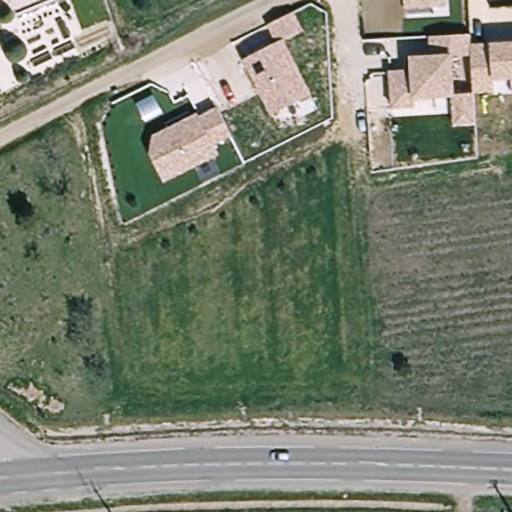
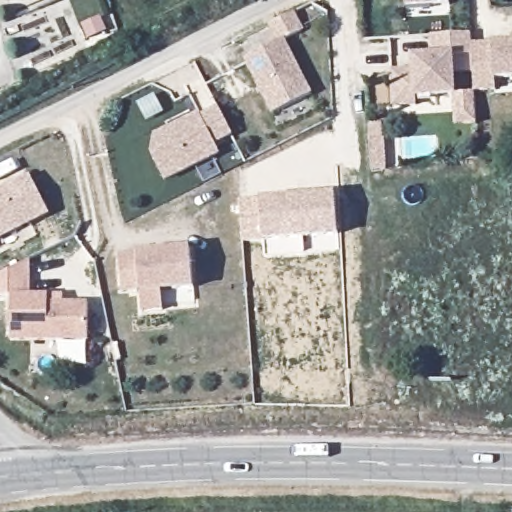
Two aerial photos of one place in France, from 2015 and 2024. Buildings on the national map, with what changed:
unchanged [(24,0),(20,1),(19,0),(24,0)]
unchanged [(406,0),(447,0),(447,5),(407,7),(406,0)]
unchanged [(310,93),(274,116),(245,61),(274,43),(266,27),(291,12),(303,29),(284,41),(310,93)]
unchanged [(411,69),(411,55),(429,55),(428,35),(471,35),(472,44),(491,43),(512,41),(512,79),(494,80),(494,95),(475,94),(476,125),(454,125),(452,96),(417,97),(417,105),(393,105),(391,72),(411,69)]
unchanged [(201,117),(217,110),(231,135),(213,145),(218,156),(165,182),(150,155),(155,134),(198,113),(201,117)]
new [(371,171),(368,124),(383,123),(386,170),(371,171)]
unchanged [(48,213),(0,237),(0,190),(29,175),(48,213)]
new [(335,193),(340,235),(266,242),(243,244),(241,201),(260,198),(335,193)]
new [(190,249),(193,288),(138,291),(120,292),(116,255),(136,254),(190,249)]
new [(30,295),(48,294),(48,301),(88,302),(88,341),(10,343),(9,295),(0,296),(0,275),(29,261),(30,295)]
new [(162,290),(163,310),(143,312),(141,292),(162,290)]

